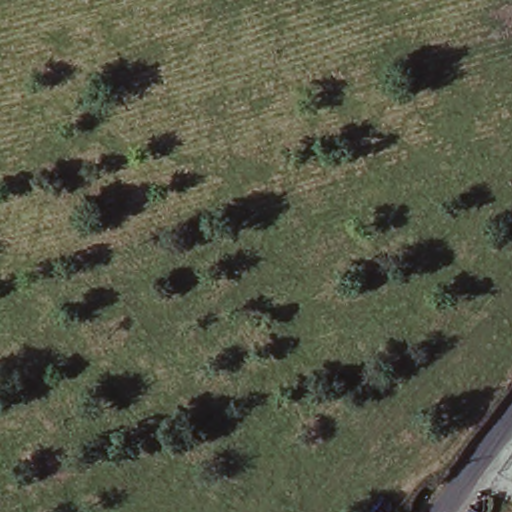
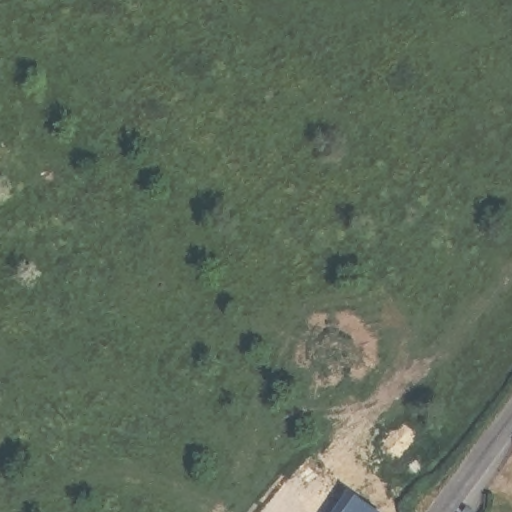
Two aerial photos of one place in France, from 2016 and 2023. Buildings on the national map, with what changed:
new [(348,490),(377,512),(332,512),(348,490)]

